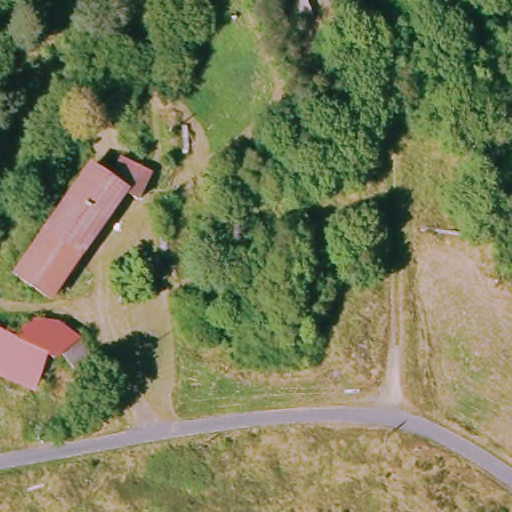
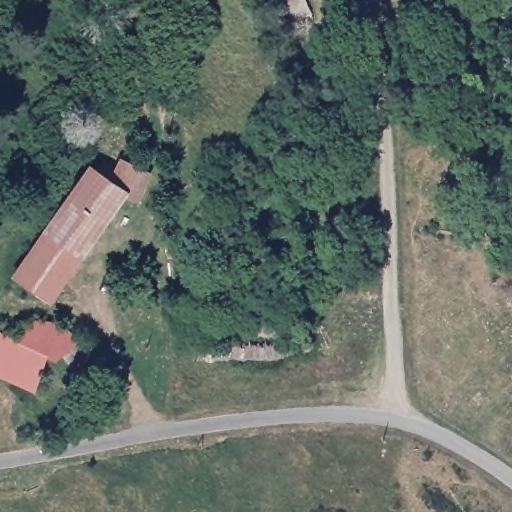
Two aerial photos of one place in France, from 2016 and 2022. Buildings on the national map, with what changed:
unchanged [(288,30),(292,39),(280,46),(275,34),(285,25),(282,20),(275,8),(288,0),(298,0),(302,7),(308,16),(288,30)]
unchanged [(149,188),(141,204),(125,193),(84,255),(41,227),(87,163),(100,171),(108,155),(120,163),(123,158),(150,173),(149,188)]
unchanged [(41,227),(84,255),(52,301),(9,271),(41,227)]
unchanged [(14,336),(30,323),(46,323),(60,328),(74,342),(89,358),(86,361),(75,372),(60,357),(51,365),(41,391),(31,389),(0,380),(0,332),(14,336)]

